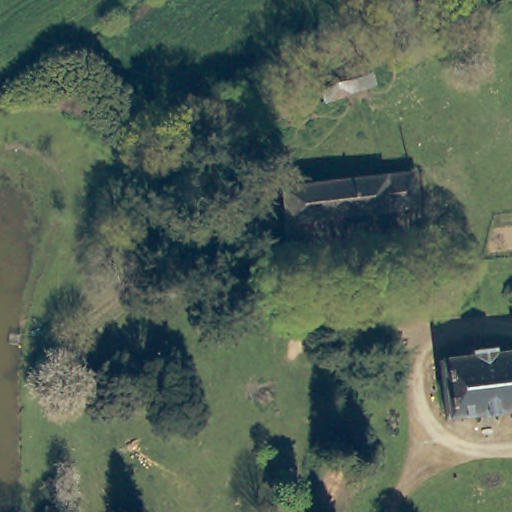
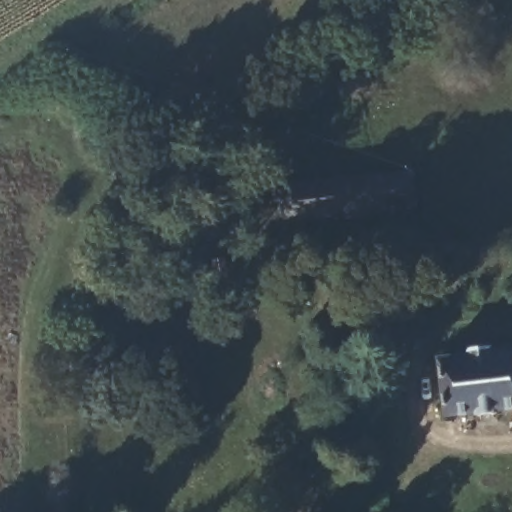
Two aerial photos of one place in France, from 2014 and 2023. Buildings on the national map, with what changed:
unchanged [(293,89),(305,82),(359,57),(369,81),(316,106),(304,112),(293,89)]
unchanged [(281,236),(279,221),(274,187),(410,170),(413,204),(302,218),(304,234),(281,236)]
unchanged [(465,355),(464,348),(487,345),(488,352),(512,348),(512,407),(444,415),(436,360),(465,355)]

